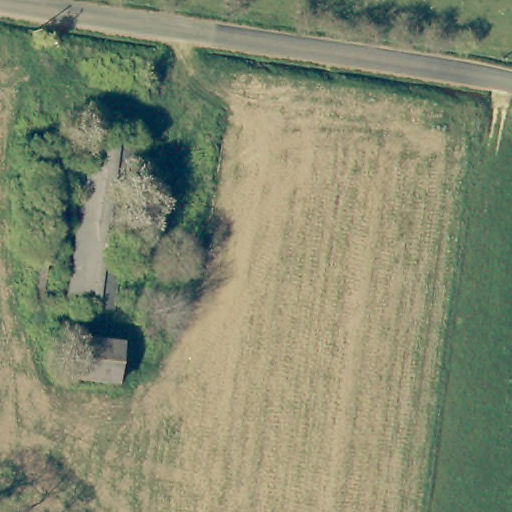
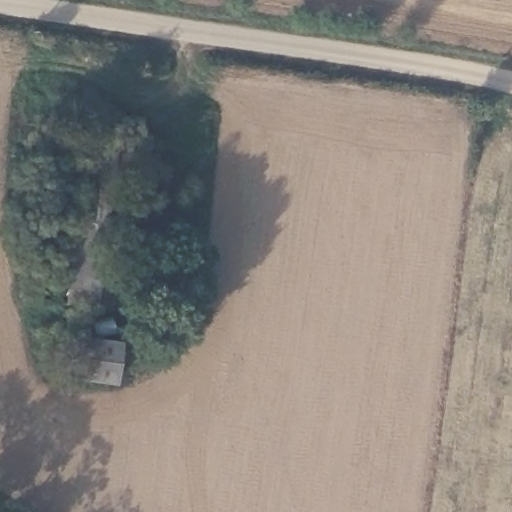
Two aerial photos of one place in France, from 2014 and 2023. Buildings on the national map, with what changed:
unchanged [(112,312),(75,307),(91,146),(126,150),(112,312)]
unchanged [(53,168),(54,160),(77,161),(77,180),(52,178),(42,303),(30,302),(42,166),(53,168)]
unchanged [(119,385),(71,378),(76,340),(124,346),(119,385)]

